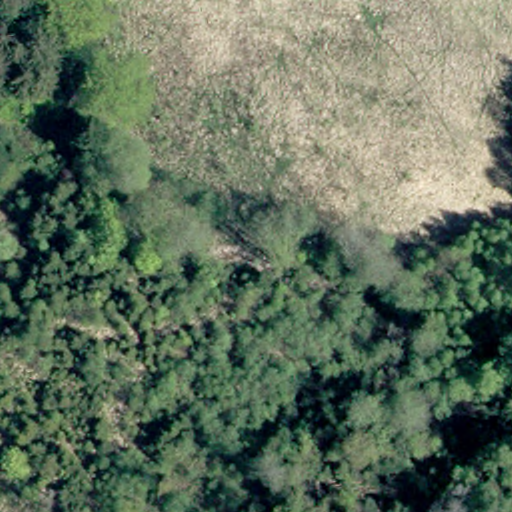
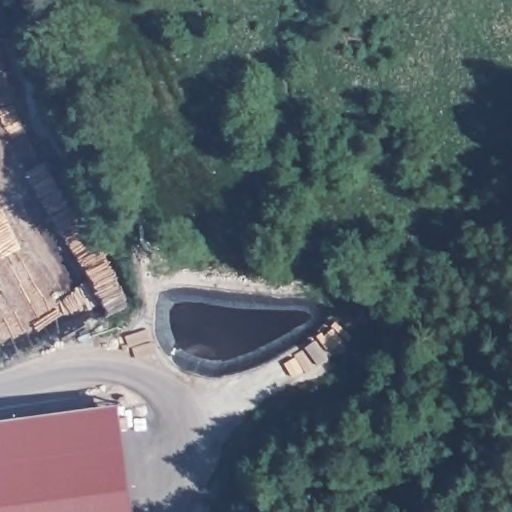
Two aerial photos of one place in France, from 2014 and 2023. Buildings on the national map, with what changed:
new [(124,403),(138,512),(0,512),(0,419),(124,403)]

